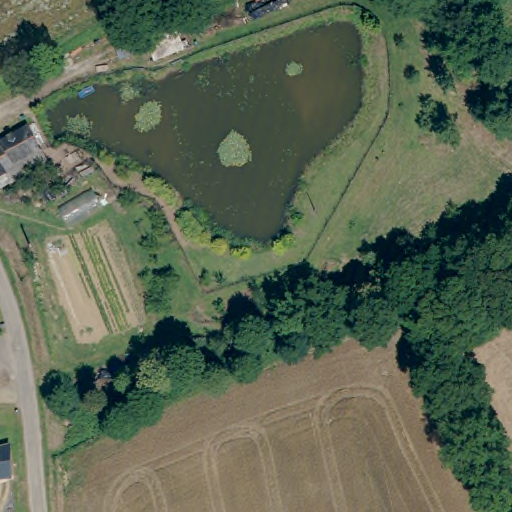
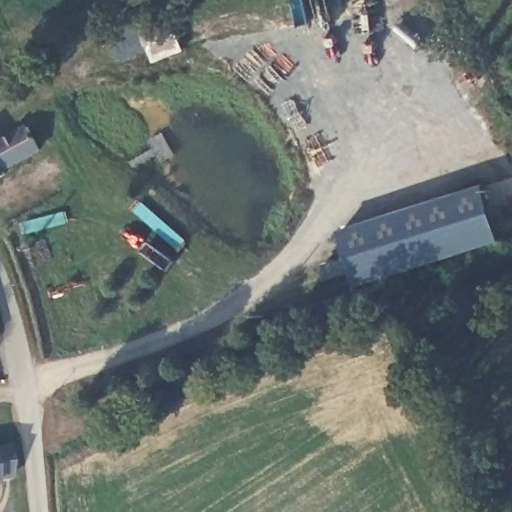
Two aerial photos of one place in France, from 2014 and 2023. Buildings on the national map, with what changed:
unchanged [(4,147),(3,142),(32,129),(40,145),(42,149),(3,167),(6,173),(0,176),(0,149),(4,147)]
new [(340,229),(485,184),(503,240),(357,286),(340,229)]
unchanged [(12,475),(0,478),(0,443),(8,441),(12,475)]

